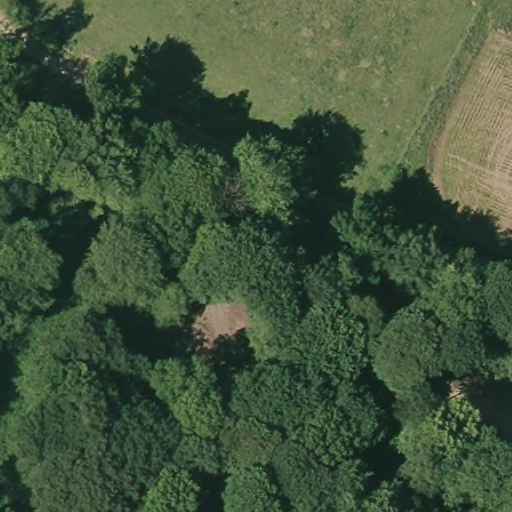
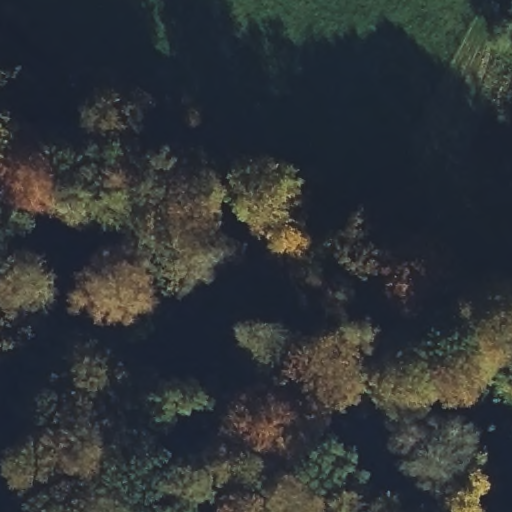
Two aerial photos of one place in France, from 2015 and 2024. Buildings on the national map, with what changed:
unchanged [(401,204),(384,203),(384,185),(403,185),(401,204)]

